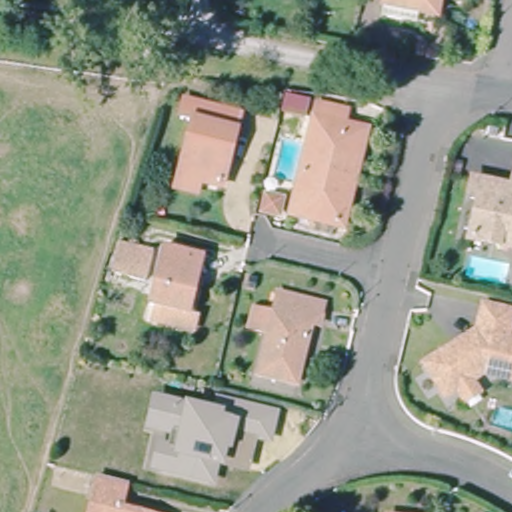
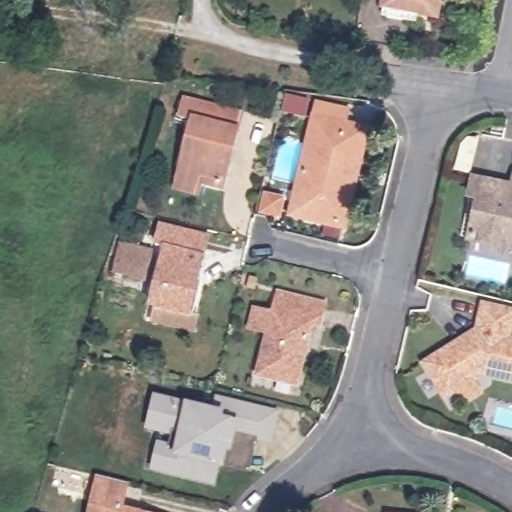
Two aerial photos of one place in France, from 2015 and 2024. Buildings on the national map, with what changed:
unchanged [(383,4),(383,0),(436,0),(434,14),(383,4)]
unchanged [(173,179),(175,169),(188,115),(178,113),(182,96),(234,107),(218,179),(197,174),(194,184),(173,179)]
unchanged [(307,126),(312,108),(337,114),(334,132),(355,137),(336,226),(284,215),(307,126)]
unchanged [(480,200),(471,198),(474,179),(512,187),(512,247),(473,239),(480,200)]
unchanged [(158,253),(159,253),(152,285),(138,281),(113,272),(118,240),(158,253)]
unchanged [(194,325),(159,317),(163,302),(148,299),(152,285),(159,253),(161,246),(203,255),(189,309),(198,311),(194,325)]
unchanged [(318,355),(305,352),(298,384),(256,375),(267,326),(253,323),(256,306),(272,309),(275,294),(323,305),(317,329),(324,330),(318,355)]
unchanged [(463,389),(451,396),(432,363),(488,329),(494,303),(512,308),(512,378),(490,373),(478,380),(486,393),(471,402),(463,389)]
unchanged [(218,458),(214,457),(210,474),(163,463),(167,444),(170,444),(174,426),(156,422),(162,397),(216,409),(219,397),(273,410),(267,433),(231,424),(228,441),(223,440),(218,458)]
unchanged [(130,480),(123,507),(146,512),(88,512),(98,472),(130,480)]
unchanged [(387,512),(382,512),(383,511),(387,512)]

